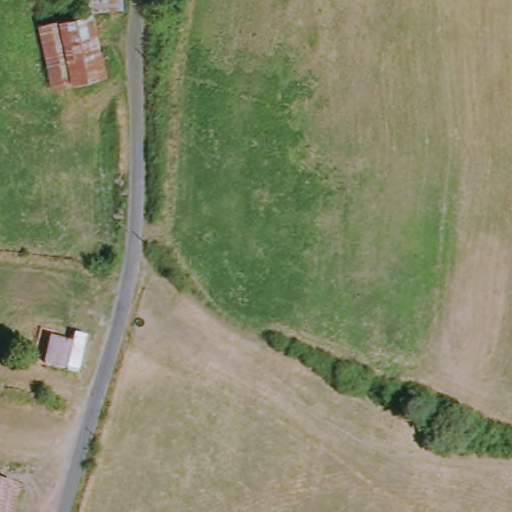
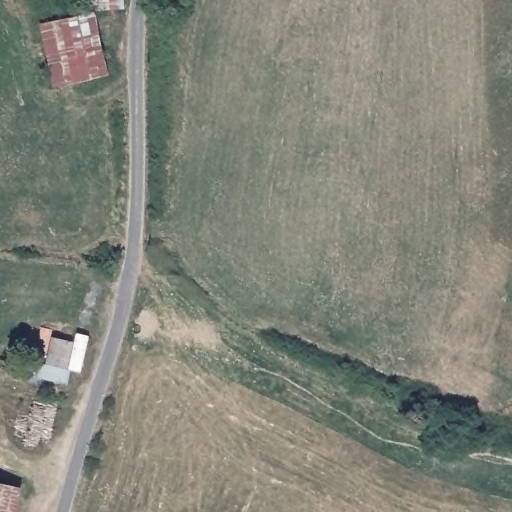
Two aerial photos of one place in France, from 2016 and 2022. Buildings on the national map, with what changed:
unchanged [(97,10),(115,76),(58,89),(41,24),(97,10)]
unchanged [(63,345),(58,373),(34,368),(39,340),(63,345)]
unchanged [(18,512),(0,512),(0,486),(24,495),(18,512)]

